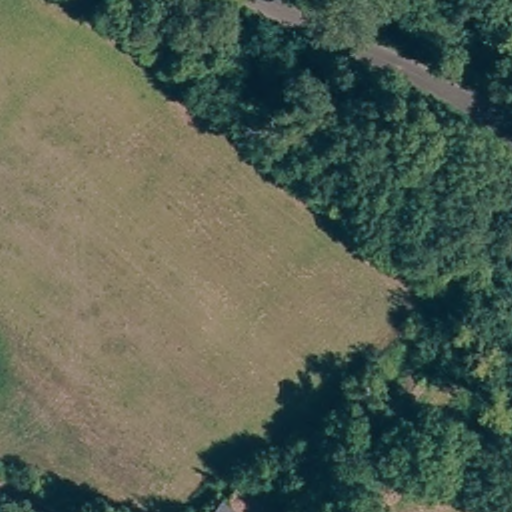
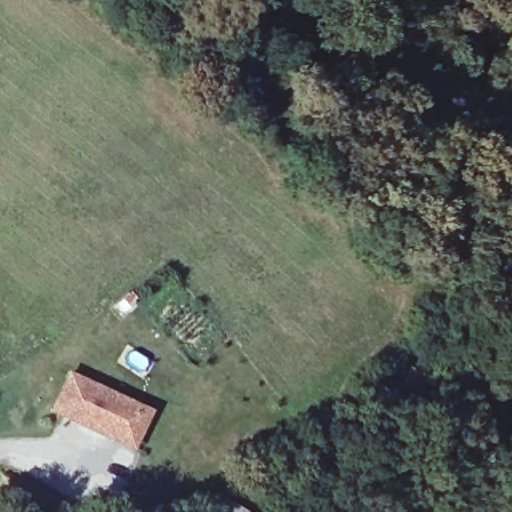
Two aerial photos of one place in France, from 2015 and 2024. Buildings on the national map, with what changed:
new [(67,370),(152,411),(134,451),(48,413),(67,370)]
unchanged [(228,496),(237,483),(270,505),(265,512),(203,512),(216,490),(228,496)]

